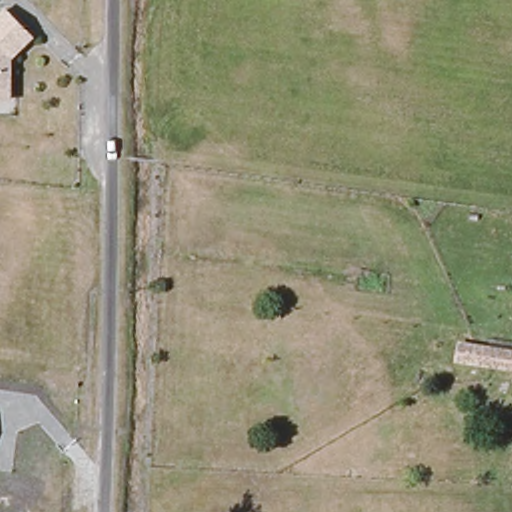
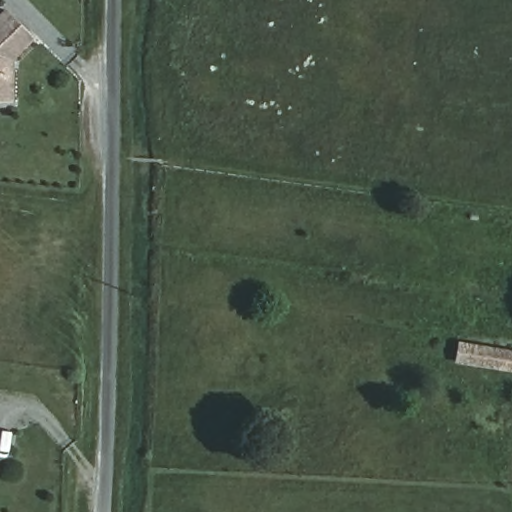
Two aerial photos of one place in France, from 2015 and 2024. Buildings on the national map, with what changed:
unchanged [(31,33),(0,67),(0,10),(1,8),(31,33)]
unchanged [(9,100),(0,100),(0,68),(8,69),(9,100)]
unchanged [(453,340),(512,349),(512,375),(448,364),(453,340)]

